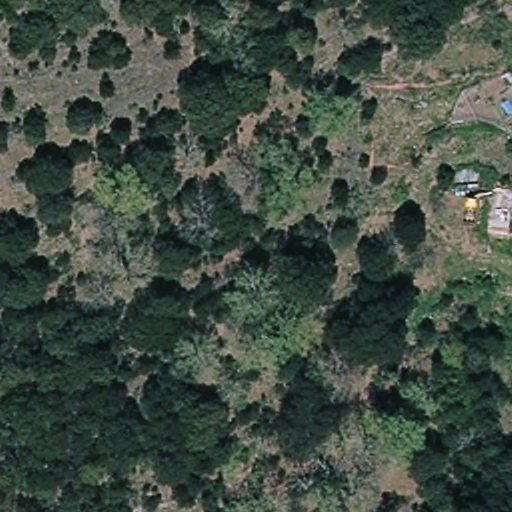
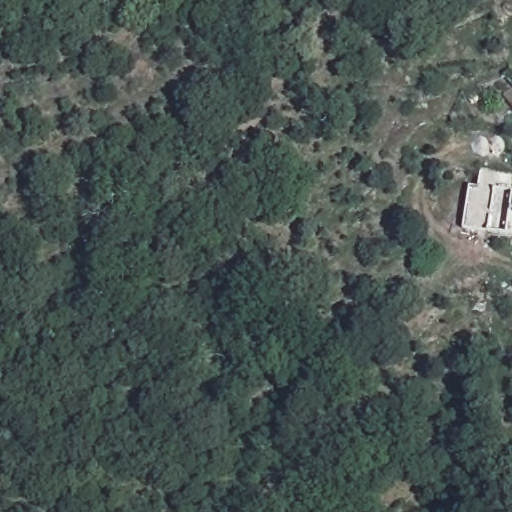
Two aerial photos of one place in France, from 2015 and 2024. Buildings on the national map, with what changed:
new [(463,229),(469,185),(478,186),(481,168),(512,172),(512,183),(511,190),(512,190),(512,234),(463,229)]

